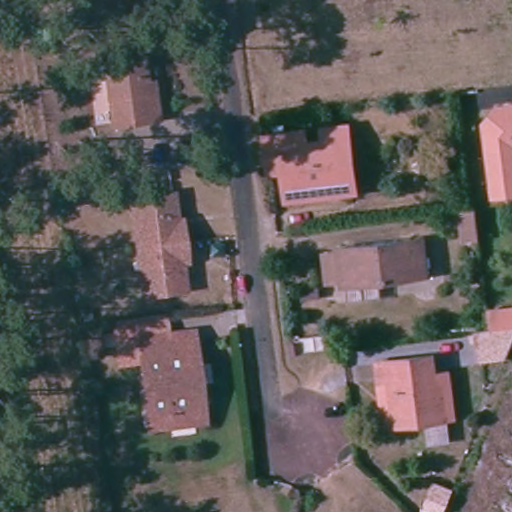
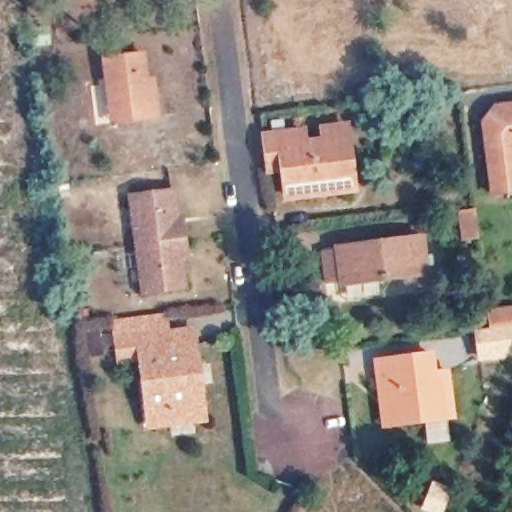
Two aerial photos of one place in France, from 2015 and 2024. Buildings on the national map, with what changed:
unchanged [(147,79),(149,104),(113,107),(110,76),(99,77),(97,57),(108,56),(144,53),(147,79)]
unchanged [(149,104),(147,79),(158,78),(163,118),(114,123),(113,107),(149,104)]
unchanged [(486,138),(484,119),(500,102),(512,101),(512,194),(491,196),(486,138)]
unchanged [(283,187),(281,173),(268,174),(264,140),(302,136),(304,149),(328,145),(327,133),(346,130),(355,195),(345,196),(295,202),(285,203),(283,187)]
unchanged [(180,259),(183,286),(142,291),(130,196),(172,191),(175,218),(180,218),(181,223),(184,252),(185,258),(180,259)]
unchanged [(475,244),(459,245),(456,216),(472,214),(475,244)]
unchanged [(424,278),(339,289),(334,250),(419,240),(424,278)]
unchanged [(512,326),(489,328),(487,313),(512,310),(512,326)]
unchanged [(190,411),(183,354),(170,355),(168,337),(193,334),(204,423),(147,430),(145,417),(190,411)]
unchanged [(170,355),(183,354),(190,411),(145,417),(135,341),(168,337),(170,355)]
unchanged [(444,423),(392,431),(391,421),(386,384),(377,385),(374,363),(429,357),(434,388),(440,387),(444,423)]

